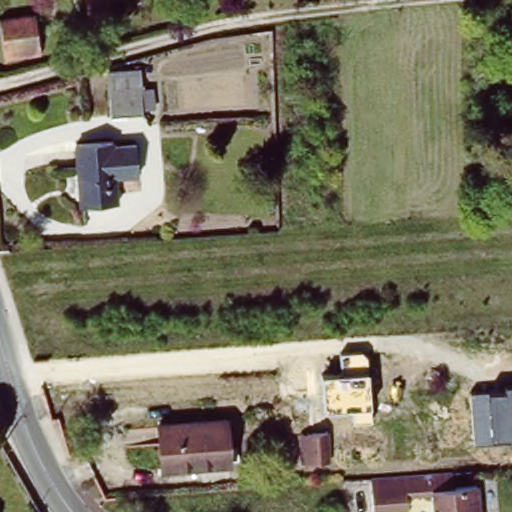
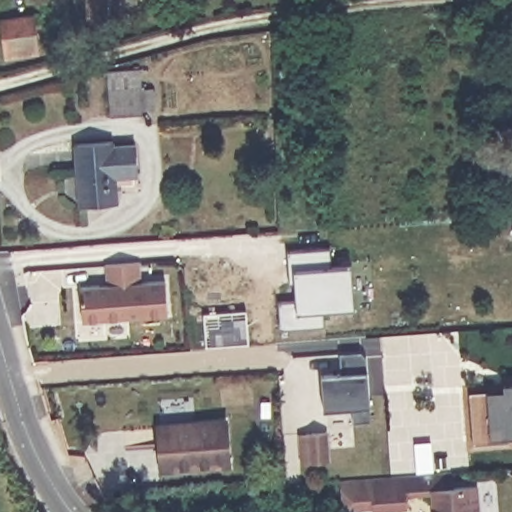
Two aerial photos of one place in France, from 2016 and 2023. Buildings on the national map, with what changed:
unchanged [(92,0),(116,0),(118,21),(94,25),(92,0)]
unchanged [(36,15),(41,54),(6,59),(0,19),(36,15)]
unchanged [(137,119),(104,121),(101,94),(134,91),(137,119)]
unchanged [(80,206),(76,145),(111,142),(112,147),(135,145),(137,176),(114,178),(117,204),(80,206)]
new [(331,311),(327,326),(283,330),(280,301),(295,300),(293,268),(288,250),(334,247),(339,264),(354,263),(358,308),(331,311)]
new [(83,321),(79,285),(110,283),(107,263),(142,261),(145,280),(169,278),(172,315),(83,321)]
unchanged [(352,424),(352,411),(324,410),(322,374),(341,375),(340,353),(362,350),(369,358),(373,421),(352,424)]
unchanged [(488,392),(505,390),(504,385),(512,384),(512,439),(474,443),(470,390),(488,387),(488,392)]
unchanged [(152,425),(220,419),(223,464),(155,469),(152,425)]
unchanged [(328,430),(331,460),(311,461),(309,431),(328,430)]
unchanged [(366,512),(367,482),(443,476),(446,492),(476,491),(476,512),(427,512),(427,506),(366,512)]

